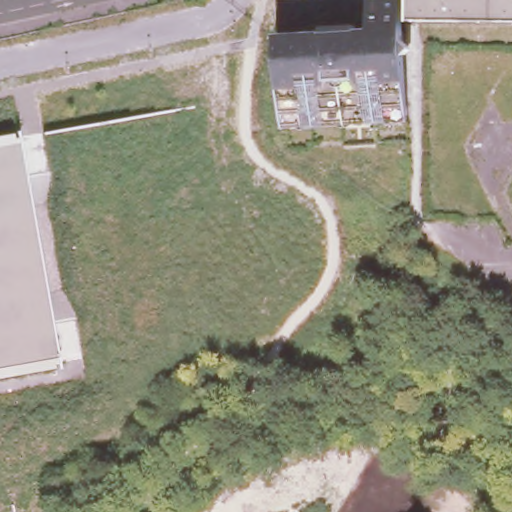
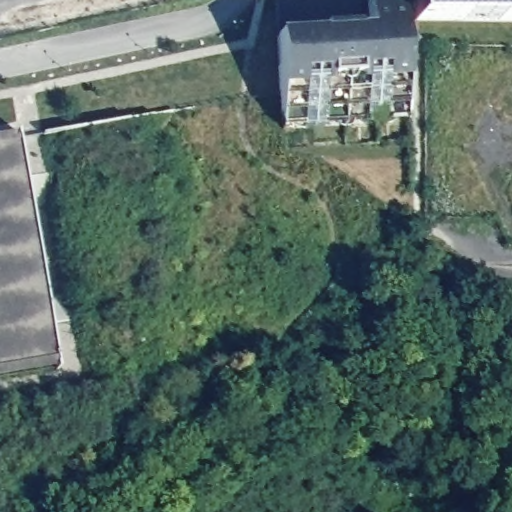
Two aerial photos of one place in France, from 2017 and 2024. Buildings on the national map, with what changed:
unchanged [(427,21),(412,20),(412,0),(512,0),(512,22),(427,21)]
unchanged [(385,125),(385,129),(362,128),(362,125),(322,125),(322,127),(298,127),(298,125),(287,125),(277,125),(277,119),(277,74),(278,32),(288,32),(323,33),(323,26),(356,26),(356,34),(371,34),(372,4),(404,5),(403,48),(410,55),(403,63),(402,121),(402,126),(385,125)]
unchanged [(58,366),(0,376),(0,136),(17,133),(58,366)]

